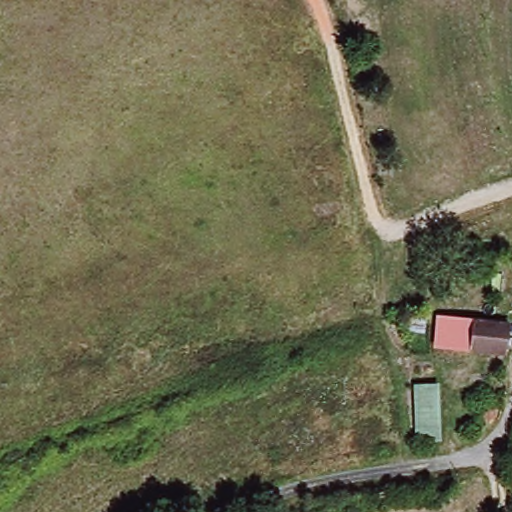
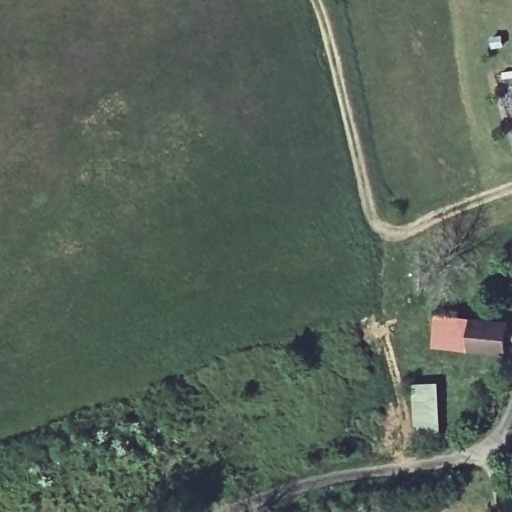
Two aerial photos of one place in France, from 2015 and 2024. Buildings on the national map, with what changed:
unchanged [(432,346),(434,314),(477,315),(476,346),(432,346)]
unchanged [(511,348),(476,346),(477,315),(512,318),(511,348)]
unchanged [(440,382),(442,441),(415,444),(412,383),(440,382)]

